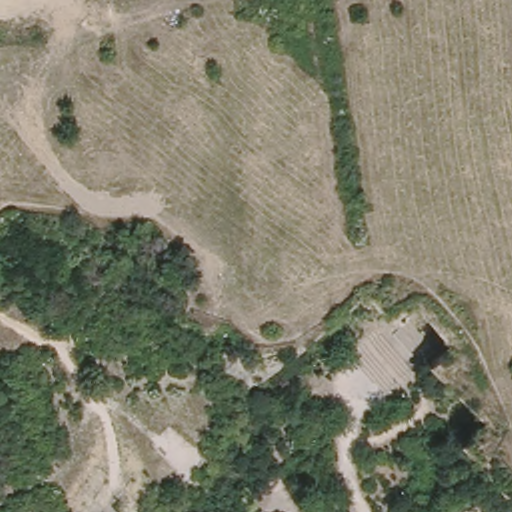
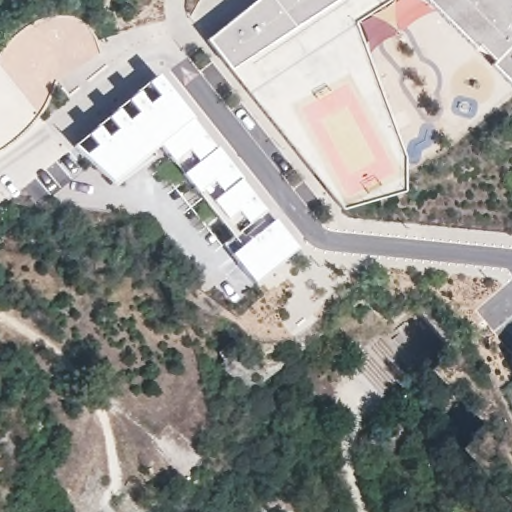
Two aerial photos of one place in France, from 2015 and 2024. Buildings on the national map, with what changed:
new [(209,40),(258,0),(390,0),(357,21),(406,157),(405,190),(343,207),(231,70),(209,40)]
new [(512,8),(511,9),(512,10),(512,84),(429,0),(512,0),(512,8)]
new [(159,77),(265,209),(227,239),(158,144),(112,181),(73,146),(159,77)]
new [(271,216),(296,247),(252,282),(227,251),(271,216)]

